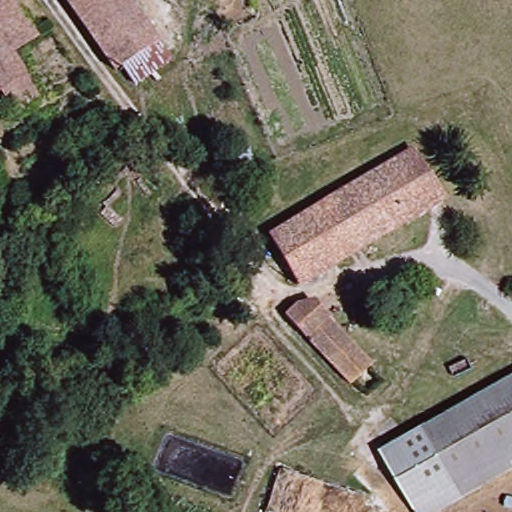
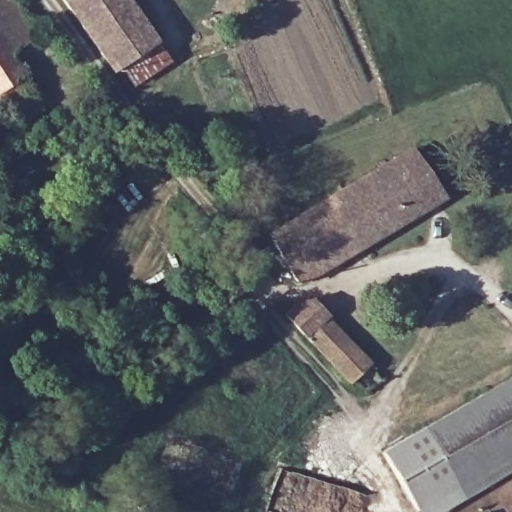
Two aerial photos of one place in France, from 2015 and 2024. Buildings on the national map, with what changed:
unchanged [(0,0),(10,0),(34,37),(9,54),(37,99),(24,108),(10,117),(0,99),(0,0)]
unchanged [(118,77),(60,0),(126,0),(159,44),(118,77)]
unchanged [(325,195),(394,154),(407,146),(438,197),(425,206),(330,261),(305,217),(329,202),(325,195)]
unchanged [(268,239),(305,217),(330,261),(294,282),(268,239)]
unchanged [(283,316),(302,297),(365,366),(346,384),(283,316)]
unchanged [(427,498),(395,440),(512,373),(512,450),(427,498)]

